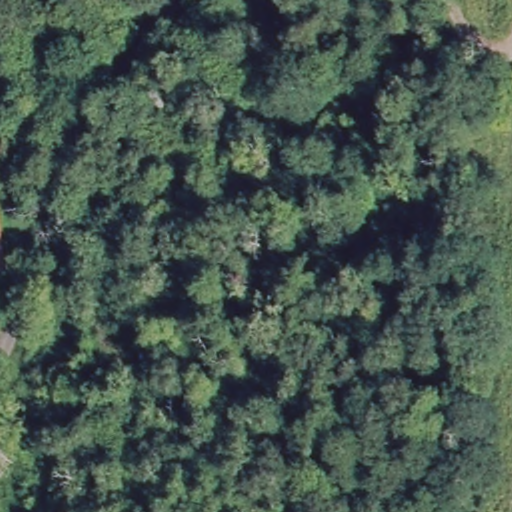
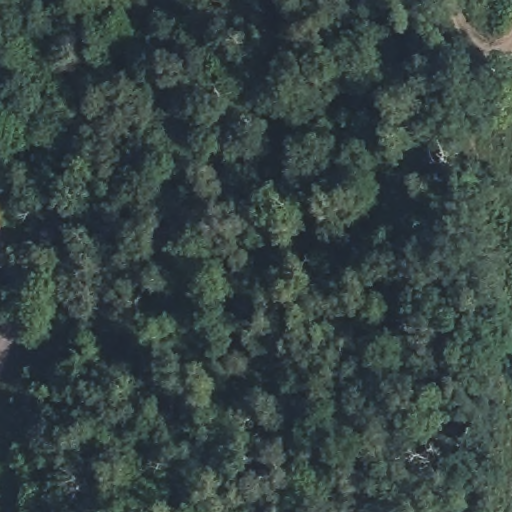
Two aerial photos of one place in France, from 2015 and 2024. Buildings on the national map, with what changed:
unchanged [(0,268),(0,259),(1,268),(0,268)]

